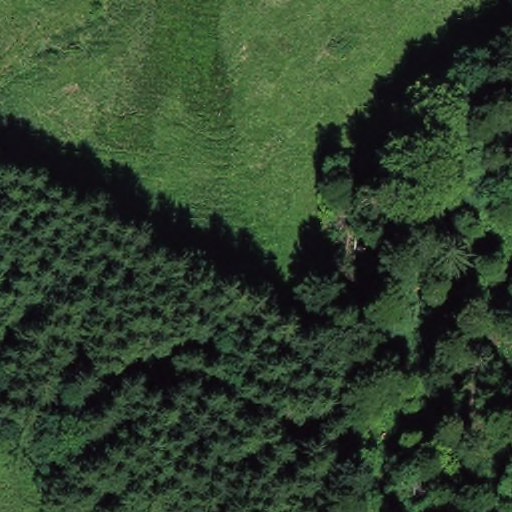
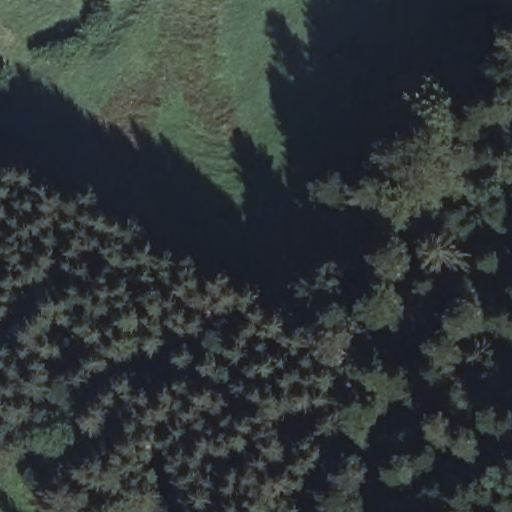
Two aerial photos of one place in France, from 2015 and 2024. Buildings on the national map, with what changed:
unchanged [(366,176),(386,209),(349,231),(329,198),(366,176)]

